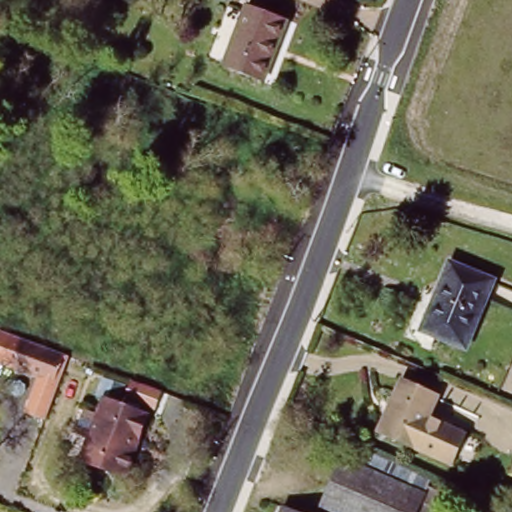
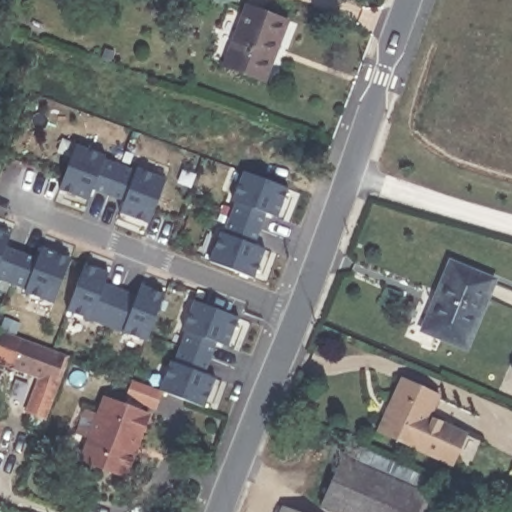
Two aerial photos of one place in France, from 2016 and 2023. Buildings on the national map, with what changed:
unchanged [(229,64),(235,46),(250,8),(250,6),(290,21),(282,43),(279,42),(272,59),(265,78),(229,64)]
new [(148,222),(120,212),(123,201),(91,189),(88,200),(60,190),(75,145),(105,156),(103,158),(135,170),(137,166),(165,178),(148,222)]
new [(277,217),(266,213),(253,245),(264,249),(253,278),(207,261),(219,231),(223,233),(236,200),(232,199),(243,171),(287,188),(277,217)]
new [(23,293),(26,288),(0,278),(0,230),(10,234),(5,245),(38,257),(42,247),(70,258),(52,303),(23,293)]
unchanged [(498,280),(469,347),(433,331),(445,298),(440,296),(453,262),(498,280)]
new [(145,341),(65,310),(85,264),(107,272),(103,283),(137,295),(140,285),(164,294),(145,341)]
new [(170,360),(173,363),(187,331),(182,330),(193,301),(237,318),(227,346),(216,342),(205,375),(215,378),(203,406),(162,391),(155,410),(125,398),(131,380),(159,390),(170,360)]
demolished [(75,343),(64,368),(26,354),(35,328),(75,343)]
new [(44,418),(23,412),(27,401),(2,393),(12,369),(0,364),(0,330),(69,356),(57,383),(44,418)]
unchanged [(465,436),(478,441),(467,465),(455,460),(452,467),(377,432),(402,375),(440,392),(431,415),(465,430),(465,436)]
unchanged [(75,430),(85,405),(102,411),(107,397),(143,411),(147,413),(132,455),(130,460),(125,473),(82,456),(87,444),(90,435),(75,430)]
unchanged [(347,453),(431,488),(434,482),(447,488),(436,512),(356,512),(327,499),(347,453)]
unchanged [(510,471),(512,465),(512,472),(510,471)]
unchanged [(292,512),(277,512),(279,507),(292,512)]

